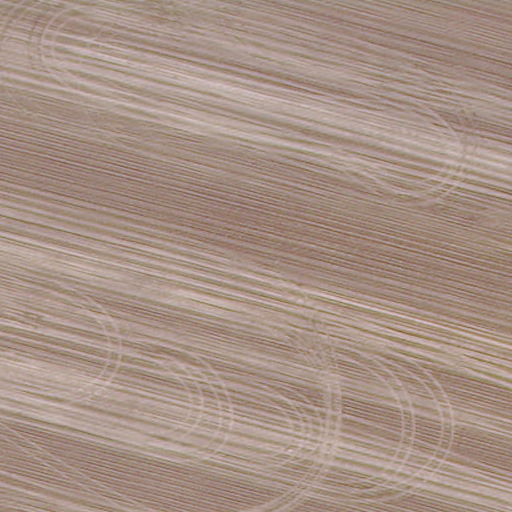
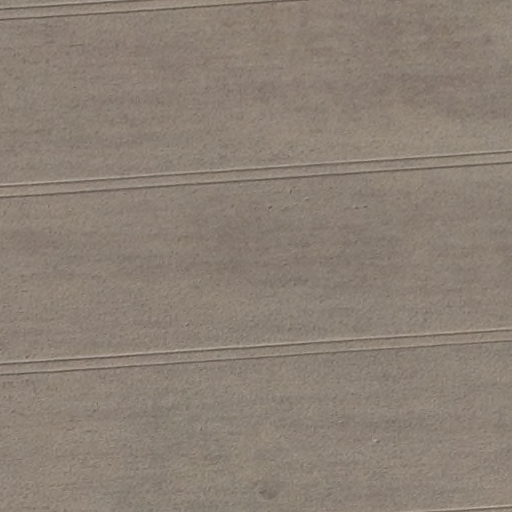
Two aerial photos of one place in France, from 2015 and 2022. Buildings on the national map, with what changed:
[]

